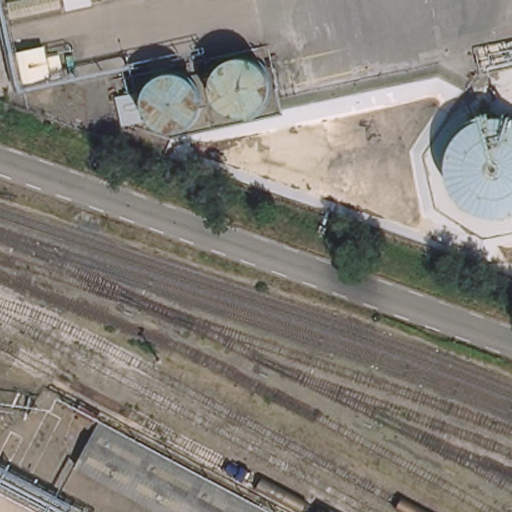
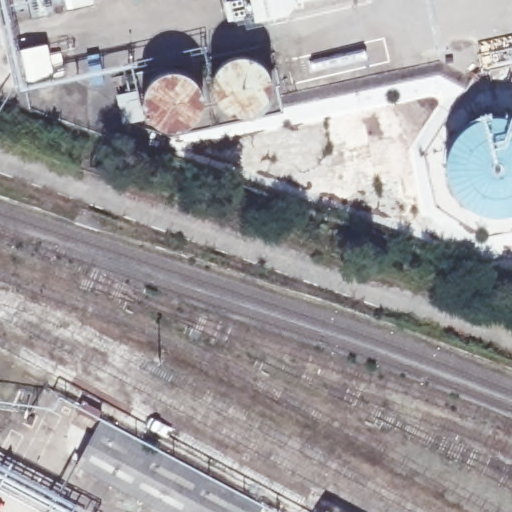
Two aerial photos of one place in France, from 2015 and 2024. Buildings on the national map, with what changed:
unchanged [(131,0),(145,0),(132,3),(131,0)]
unchanged [(50,48),(57,78),(19,85),(13,56),(50,48)]
unchanged [(83,465),(106,422),(263,506),(260,512),(171,512),(83,465)]
unchanged [(330,510),(335,512),(328,512),(330,510)]

